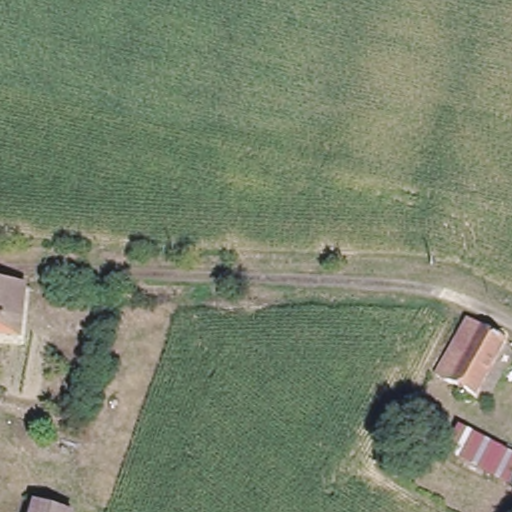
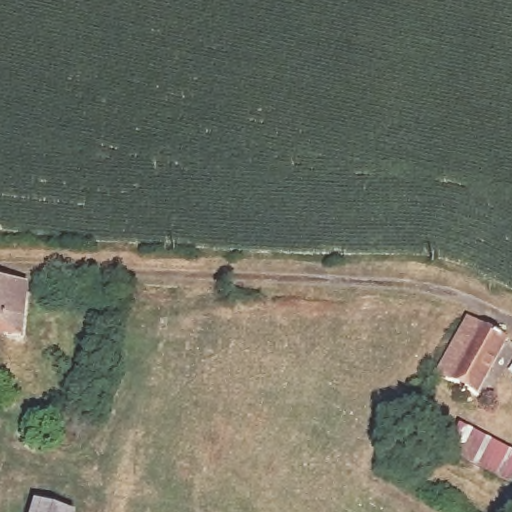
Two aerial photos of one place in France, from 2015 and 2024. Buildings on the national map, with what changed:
unchanged [(28,286),(24,333),(0,333),(0,285),(28,286)]
unchanged [(502,345),(473,397),(435,376),(467,319),(502,345)]
unchanged [(449,449),(464,428),(512,456),(512,476),(510,481),(449,449)]
unchanged [(37,504),(75,512),(35,512),(37,504)]

